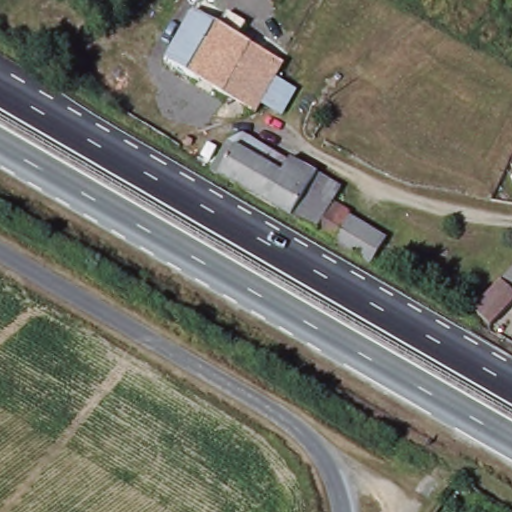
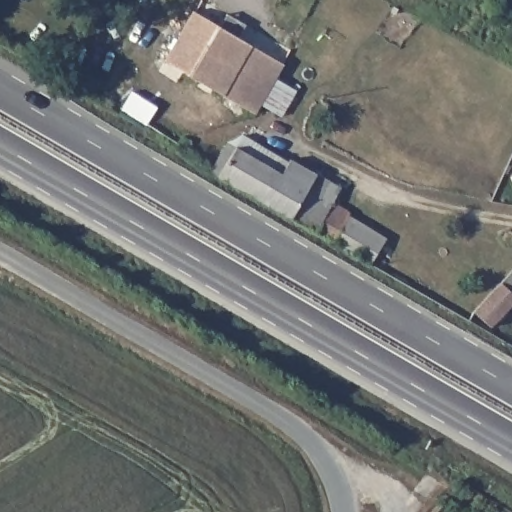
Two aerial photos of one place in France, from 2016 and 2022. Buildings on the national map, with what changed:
unchanged [(263,107),(260,115),(148,52),(170,6),(190,16),(193,10),(257,42),(253,49),(284,64),(280,80),(302,93),(285,119),(263,107)]
unchanged [(218,166),(234,137),(248,130),(294,157),(295,154),(348,185),(340,199),(358,209),(356,212),(393,234),(378,260),(377,260),(323,229),(217,166),(218,166)]
unchanged [(493,328),(476,313),(512,272),(512,306),(493,328)]

